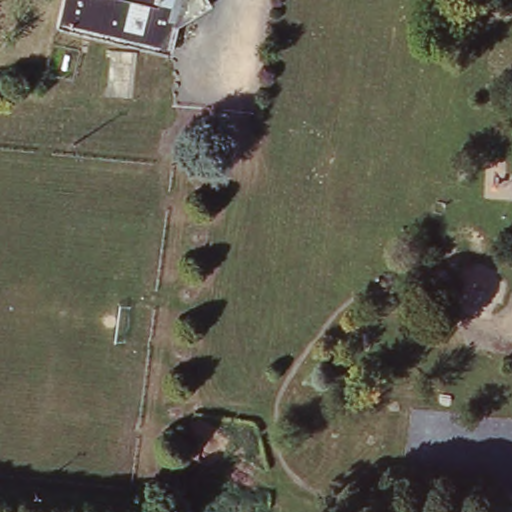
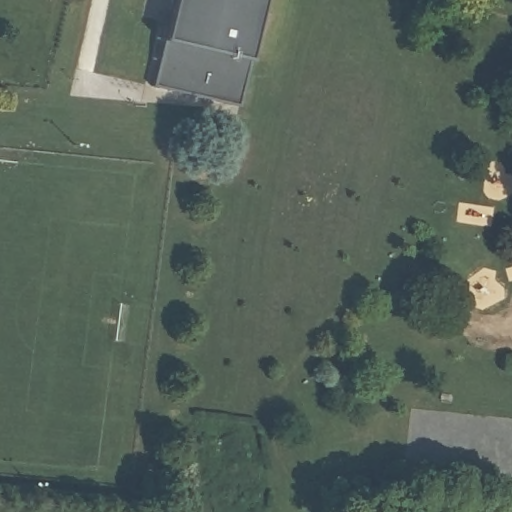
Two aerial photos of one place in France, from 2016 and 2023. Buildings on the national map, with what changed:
demolished [(67,0),(210,0),(215,7),(182,27),(174,55),(60,33),(66,2),(67,0)]
new [(150,83),(166,0),(258,0),(234,104),(150,83)]
demolished [(135,54),(125,94),(106,90),(116,49),(135,54)]

